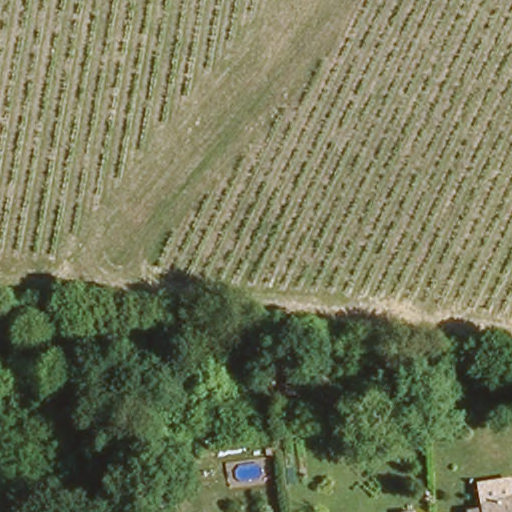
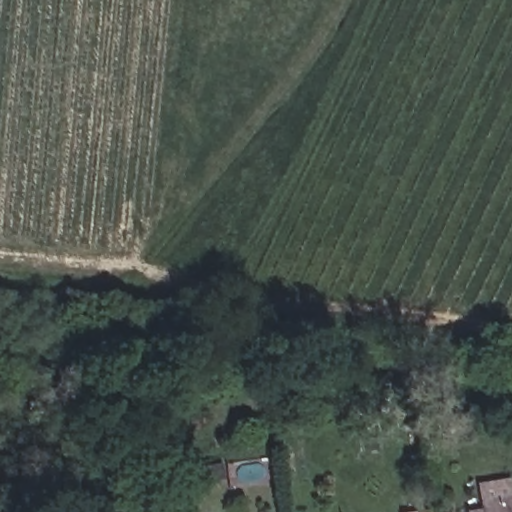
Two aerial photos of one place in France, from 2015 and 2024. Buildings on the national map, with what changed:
unchanged [(478,508),(477,500),(512,497),(512,512),(463,512),(463,509),(478,508)]

